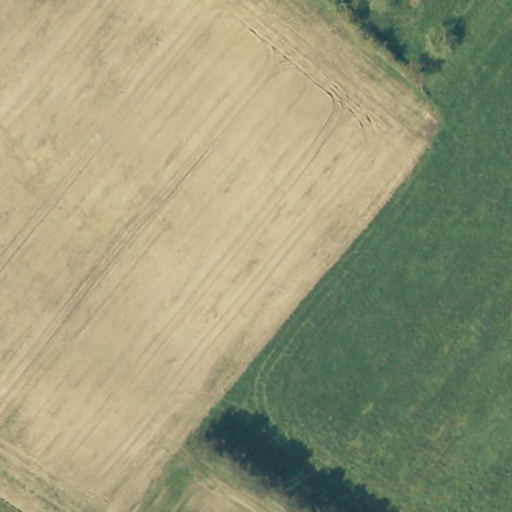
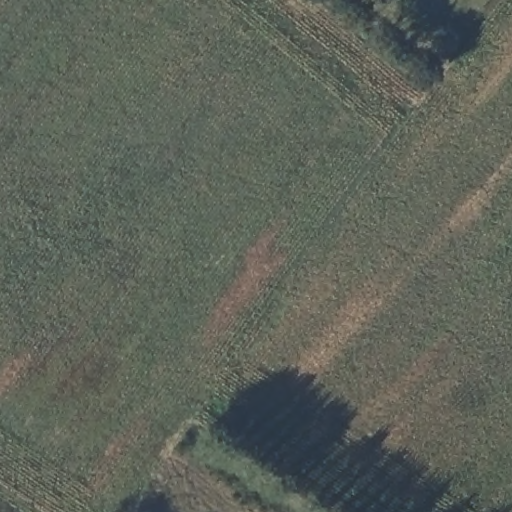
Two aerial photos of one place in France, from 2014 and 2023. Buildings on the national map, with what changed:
[]

